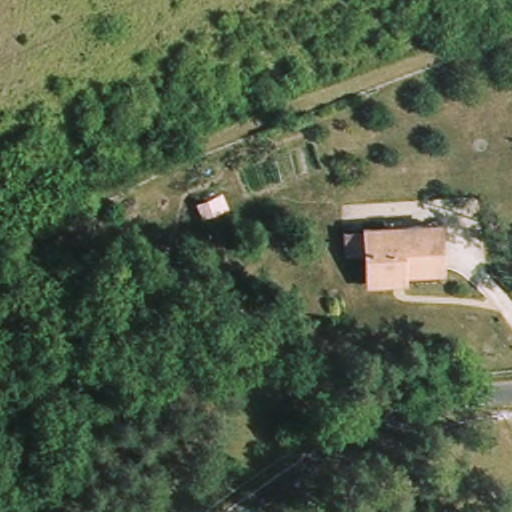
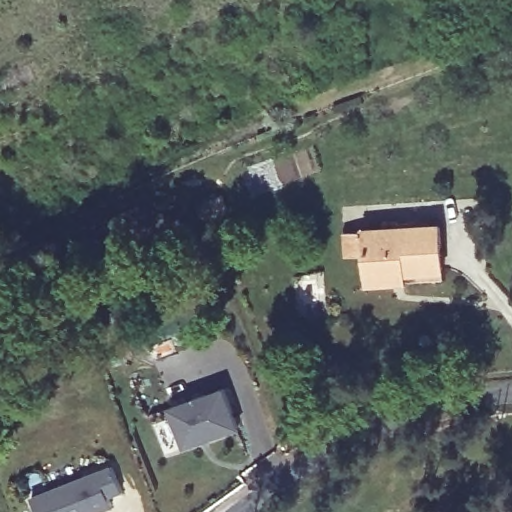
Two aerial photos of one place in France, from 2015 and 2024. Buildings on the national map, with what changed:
unchanged [(365,255),(347,256),(346,232),(364,230),(439,226),(441,271),(403,274),(404,282),(367,284),(367,272),(365,255)]
new [(240,428),(182,449),(168,406),(224,387),(240,428)]
new [(109,498),(112,507),(100,512),(37,512),(31,495),(111,464),(122,491),(109,498)]

